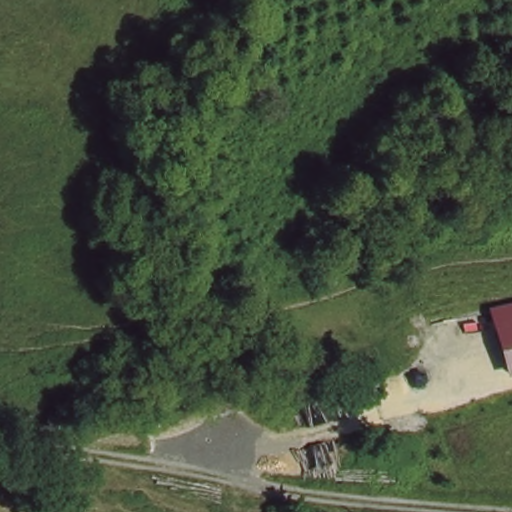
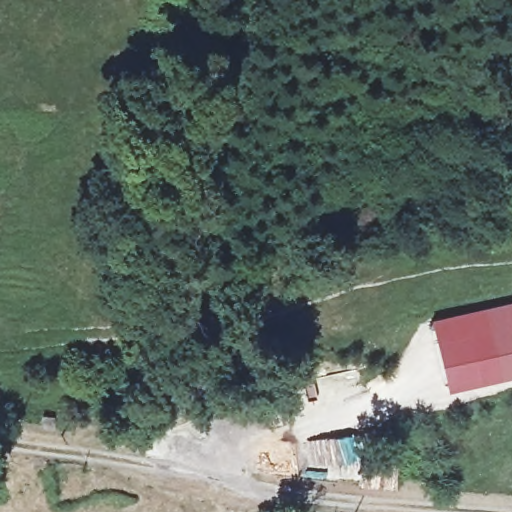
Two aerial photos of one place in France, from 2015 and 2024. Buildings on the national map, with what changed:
new [(512,375),(444,389),(430,320),(512,302),(512,375)]
demolished [(489,342),(512,339),(512,366),(496,369),(489,342)]

